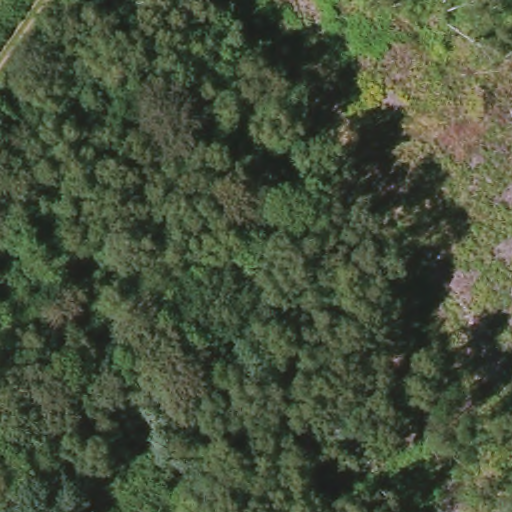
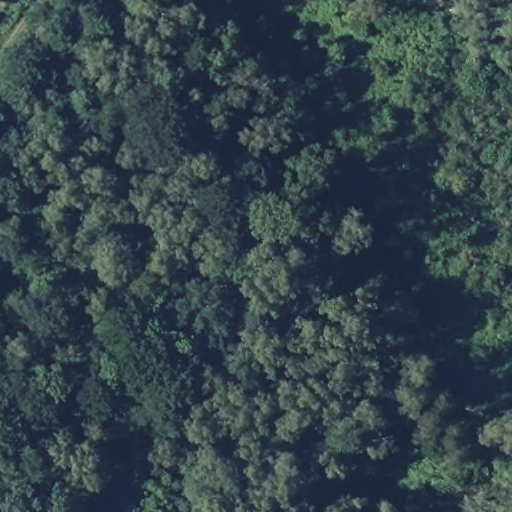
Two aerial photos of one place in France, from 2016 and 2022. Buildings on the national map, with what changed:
[]

